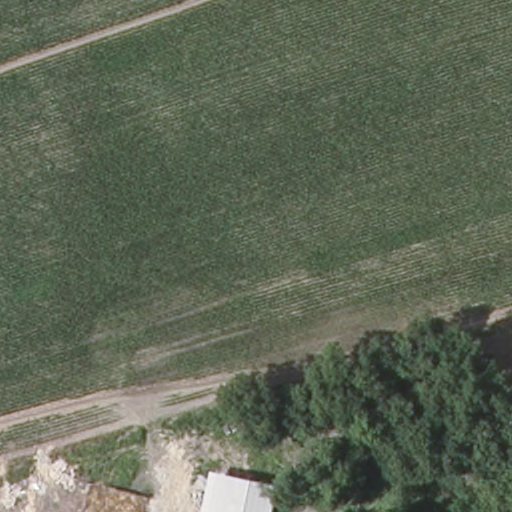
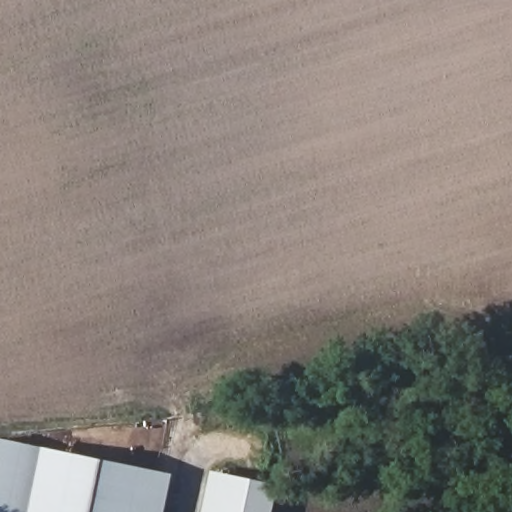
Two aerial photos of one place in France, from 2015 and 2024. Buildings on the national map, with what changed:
new [(170,473),(162,512),(0,512),(0,440),(170,473)]
unchanged [(271,512),(201,512),(210,470),(276,484),(271,512)]

